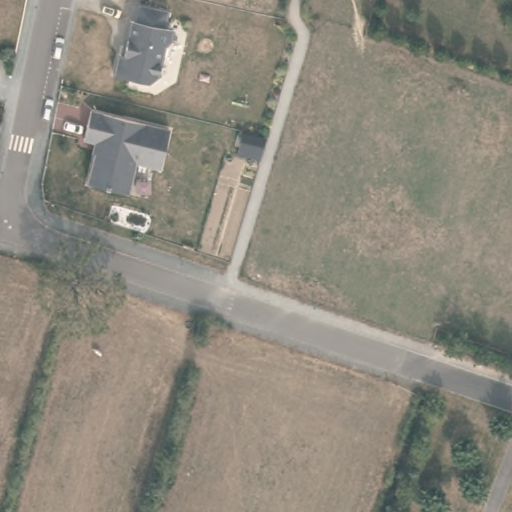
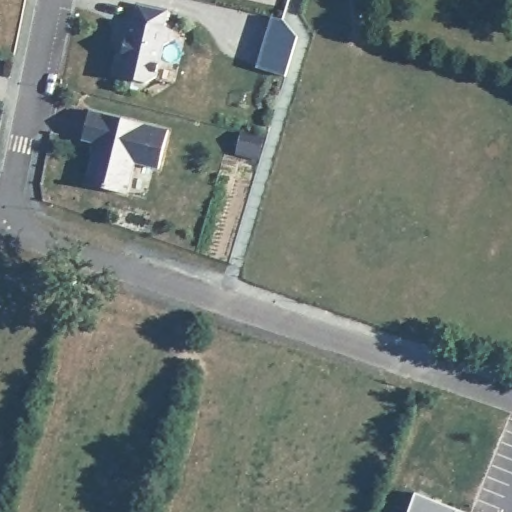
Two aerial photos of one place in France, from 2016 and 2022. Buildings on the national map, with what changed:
unchanged [(114,53),(119,54),(127,20),(131,21),(135,4),(164,10),(160,27),(169,29),(166,42),(160,45),(153,77),(144,82),(110,75),(114,53)]
new [(272,15),(282,18),(297,36),(285,76),(257,67),(272,15)]
unchanged [(169,130),(159,167),(135,161),(127,192),(87,182),(97,142),(86,139),(92,111),(169,130)]
new [(416,492),(465,512),(409,512),(416,492)]

